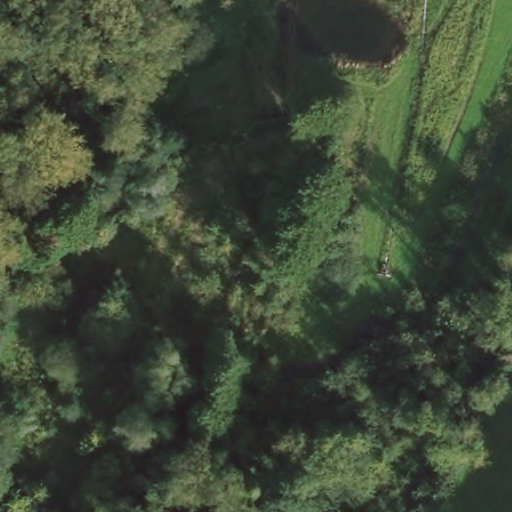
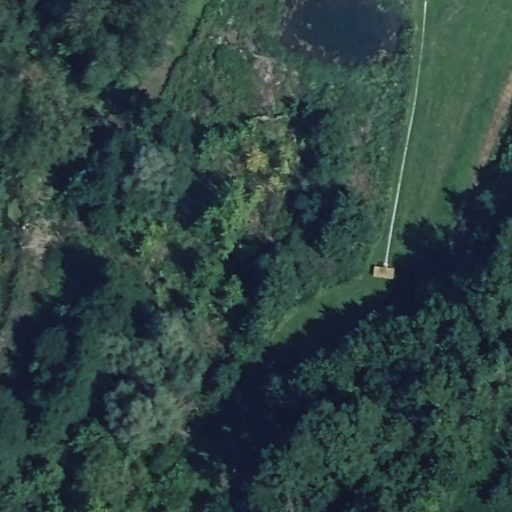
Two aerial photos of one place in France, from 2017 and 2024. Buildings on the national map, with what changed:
[]

